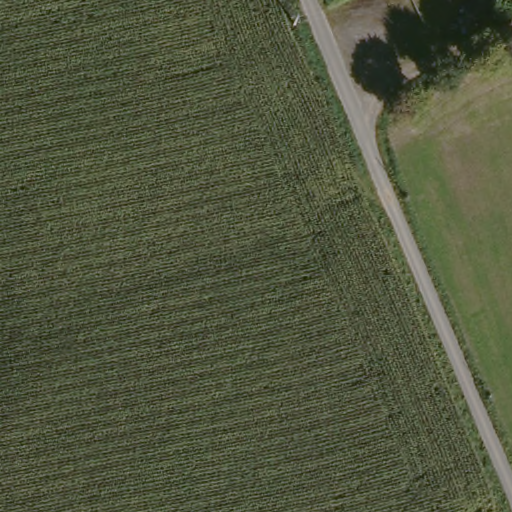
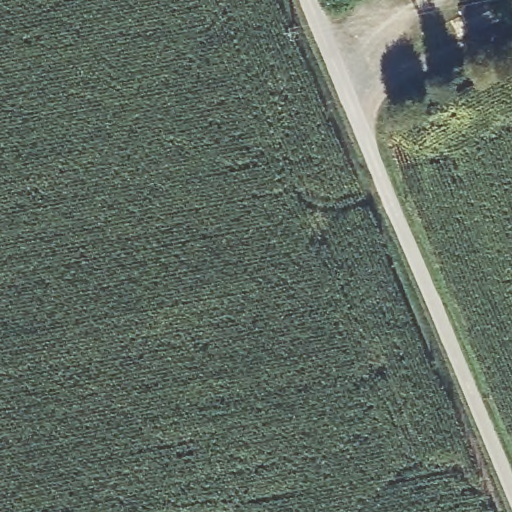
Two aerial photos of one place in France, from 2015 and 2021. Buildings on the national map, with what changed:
unchanged [(479,0),(490,0),(498,17),(472,31),(462,9),(479,0)]

